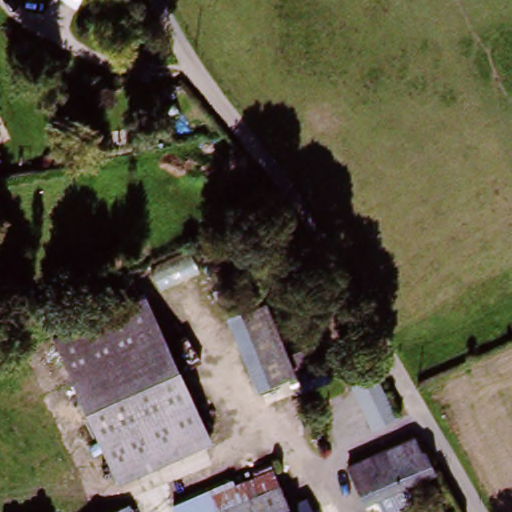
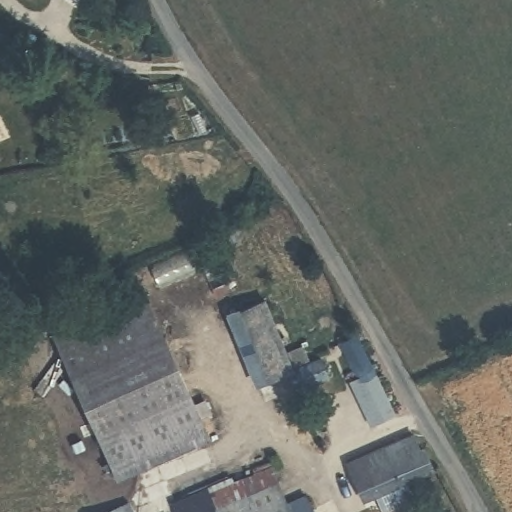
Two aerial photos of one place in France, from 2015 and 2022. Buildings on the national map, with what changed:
unchanged [(259,386),(218,282),(265,263),(296,349),(282,357),(293,375),(259,386)]
unchanged [(134,297),(210,441),(122,488),(45,345),(134,297)]
unchanged [(293,370),(286,357),(303,346),(311,357),(293,370)]
unchanged [(303,391),(294,376),(321,361),(329,375),(303,391)]
unchanged [(344,389),(373,375),(399,418),(367,432),(344,389)]
unchanged [(412,423),(436,468),(354,509),(333,462),(412,423)]
unchanged [(223,486),(226,492),(266,472),(284,510),(279,512),(171,512),(170,509),(223,486)]
unchanged [(304,500),(310,512),(279,512),(284,510),(304,500)]
unchanged [(132,512),(110,512),(128,503),(132,512)]

